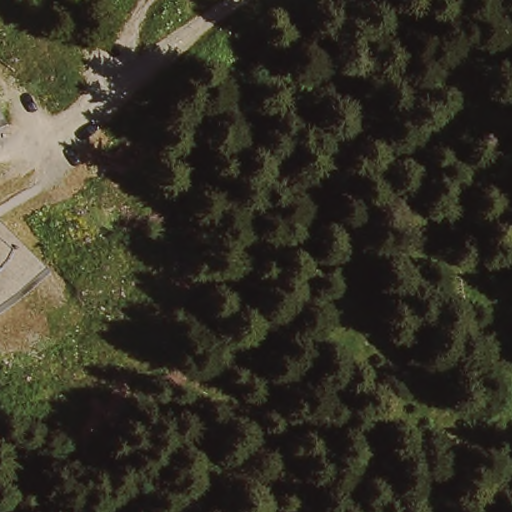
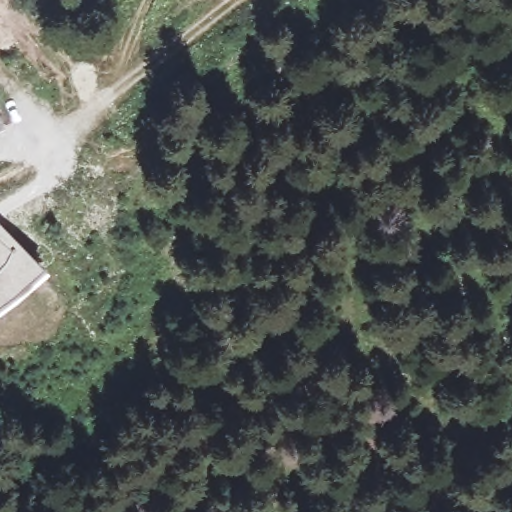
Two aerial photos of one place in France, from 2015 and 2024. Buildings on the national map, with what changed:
unchanged [(8,114),(0,118),(0,97),(8,114)]
unchanged [(2,230),(42,270),(13,294),(0,304),(0,232),(2,230)]

